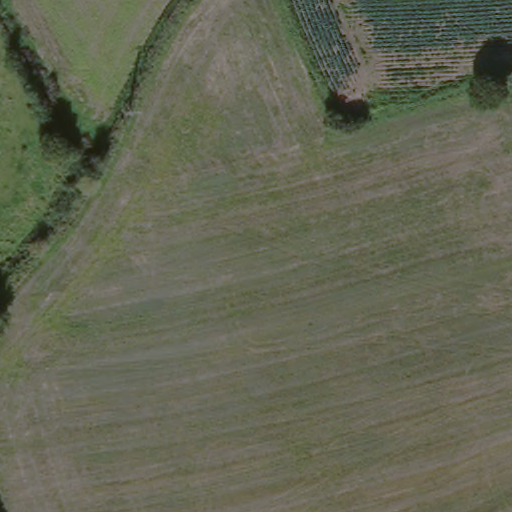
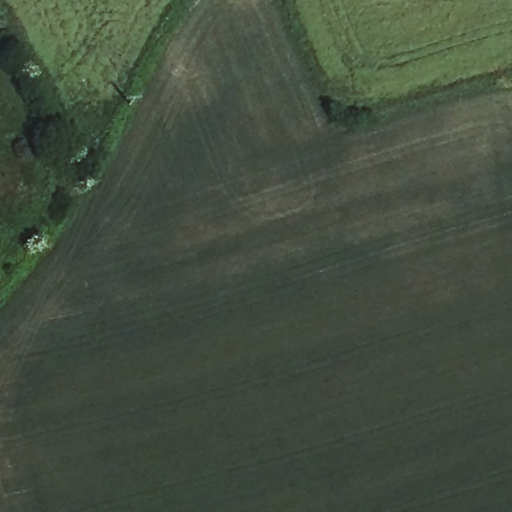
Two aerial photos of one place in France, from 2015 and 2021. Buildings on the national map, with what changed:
[]

